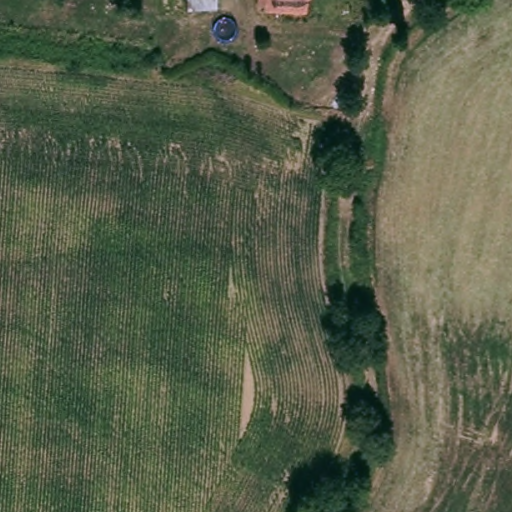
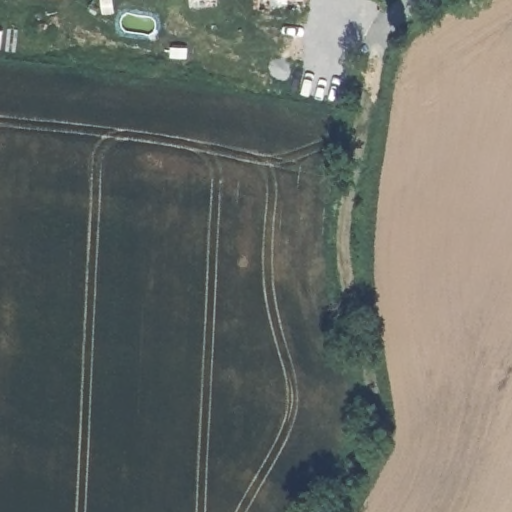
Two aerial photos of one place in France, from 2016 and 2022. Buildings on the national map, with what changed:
unchanged [(190,5),(190,0),(220,0),(220,6),(190,5)]
unchanged [(268,0),(317,0),(317,11),(268,10),(268,0)]

